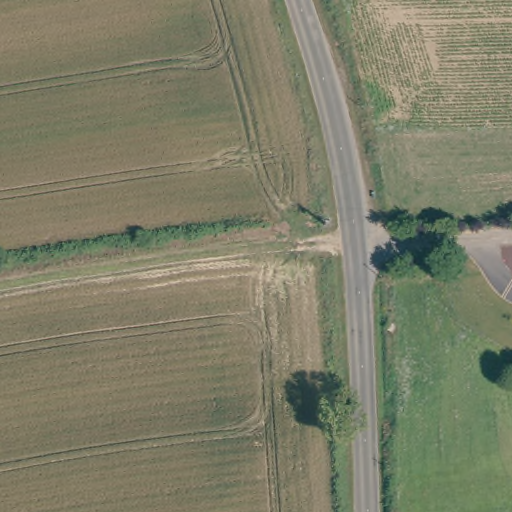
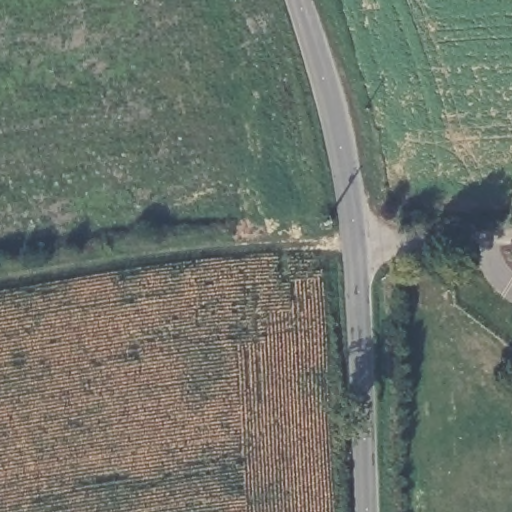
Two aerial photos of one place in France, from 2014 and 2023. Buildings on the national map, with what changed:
[]

